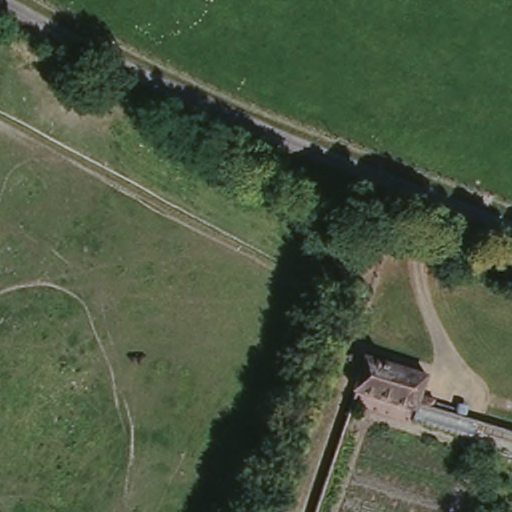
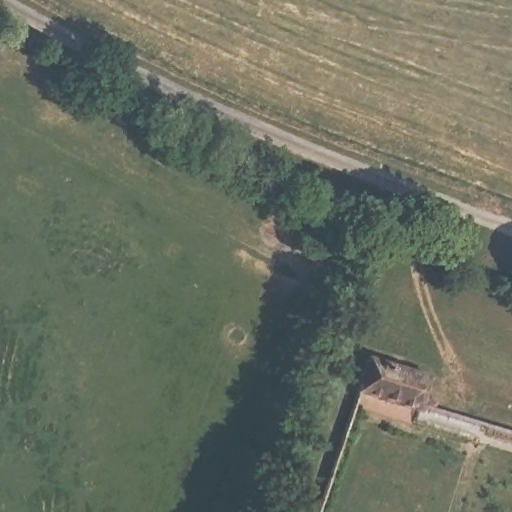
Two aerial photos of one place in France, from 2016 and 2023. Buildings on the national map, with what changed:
unchanged [(431,364),(425,387),(420,397),(357,374),(370,343),(378,346),(431,364)]

